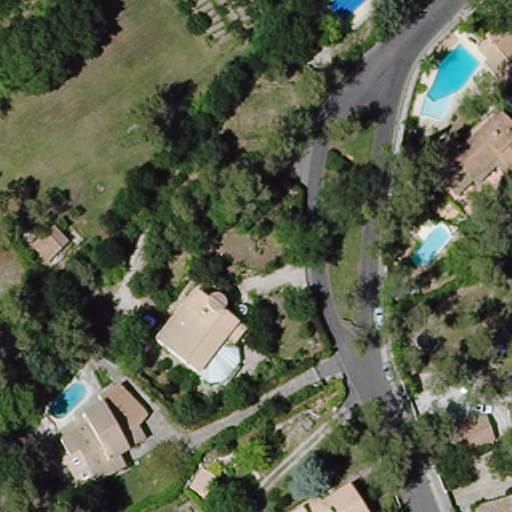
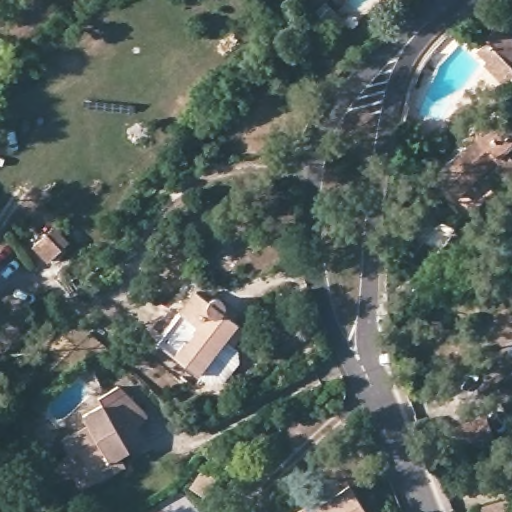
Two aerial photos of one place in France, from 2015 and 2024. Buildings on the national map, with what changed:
unchanged [(501,23),(505,27),(512,47),(512,66),(485,38),(501,23)]
unchanged [(455,167),(504,122),(512,130),(512,186),(509,183),(497,171),(476,190),(455,167)]
unchanged [(455,167),(476,190),(495,209),(475,227),(435,186),(455,167)]
unchanged [(45,236),(60,249),(47,262),(32,247),(45,236)]
unchanged [(211,306),(217,303),(222,305),(226,309),(229,316),(227,318),(250,336),(210,386),(159,345),(196,296),(211,306)]
unchanged [(142,426),(148,440),(122,455),(128,468),(100,483),(82,454),(73,457),(65,441),(92,426),(88,416),(107,406),(103,397),(122,387),(129,393),(150,415),(142,426)]
unchanged [(482,417),(494,442),(458,457),(447,432),(482,417)]
unchanged [(42,466),(33,467),(32,457),(42,456),(42,466)]
unchanged [(301,512),(304,510),(321,499),(324,506),(352,488),(369,512),(301,512)]
unchanged [(470,512),(470,511),(504,502),(511,512),(470,512)]

